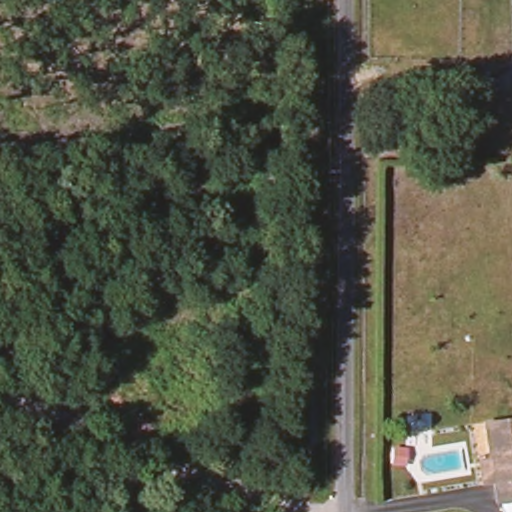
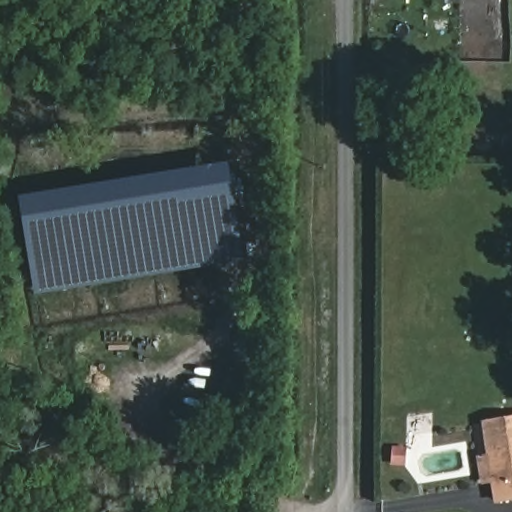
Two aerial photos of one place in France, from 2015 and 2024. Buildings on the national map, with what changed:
new [(24,201),(233,165),(246,258),(36,294),(24,201)]
unchanged [(484,419),(512,419),(512,508),(483,507),(484,419)]

